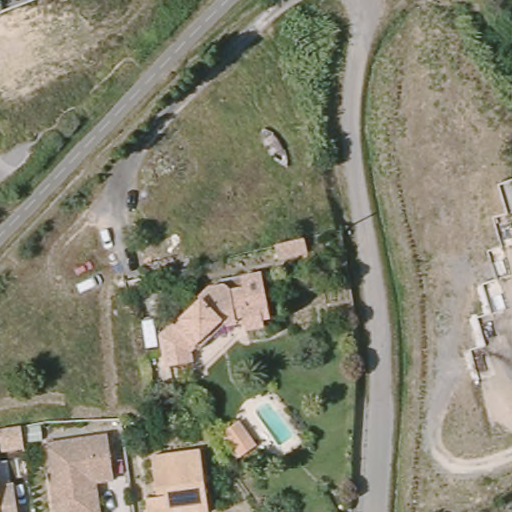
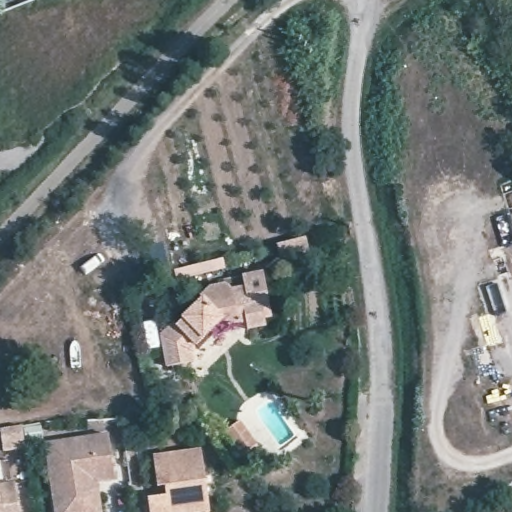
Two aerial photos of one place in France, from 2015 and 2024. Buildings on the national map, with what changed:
unchanged [(193,341),(190,343),(192,357),(168,362),(163,330),(173,320),(175,322),(205,294),(202,292),(211,283),(223,281),(223,276),(264,268),(271,311),(264,312),(265,323),(247,326),(246,315),(237,317),(228,318),(199,346),(193,341)]
unchanged [(256,446),(242,456),(225,432),(239,422),(256,446)]
unchanged [(3,450),(1,437),(0,437),(0,431),(22,427),(25,447),(3,450)]
unchanged [(48,443),(113,434),(120,480),(103,482),(104,487),(108,512),(58,512),(48,443)]
unchanged [(220,507),(184,512),(160,512),(157,494),(175,492),(174,481),(167,482),(162,451),(211,444),(220,507)]
unchanged [(19,512),(0,512),(0,485),(15,483),(19,512)]

